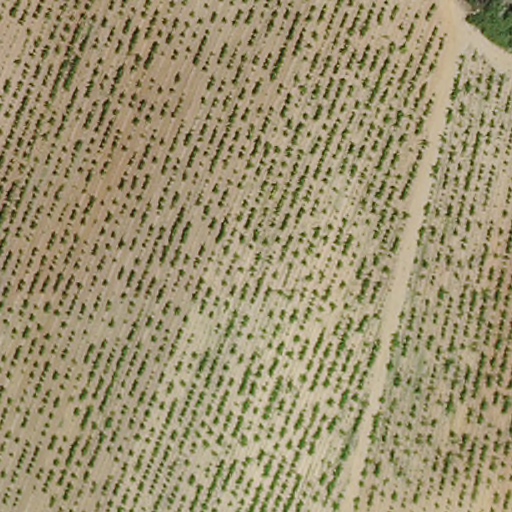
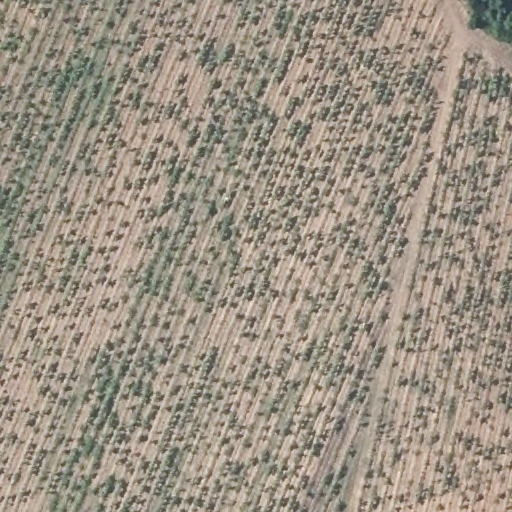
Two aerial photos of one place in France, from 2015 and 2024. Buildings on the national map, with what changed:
[]

